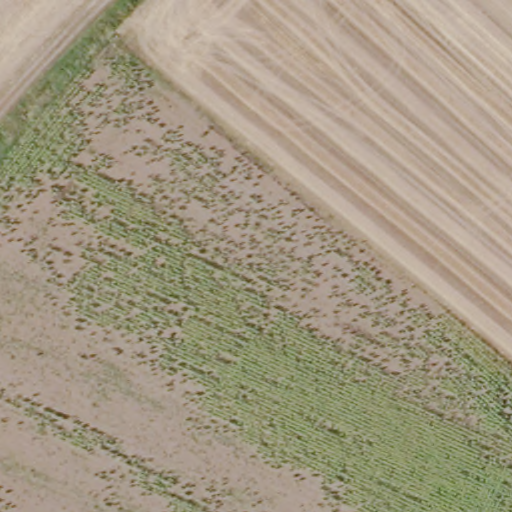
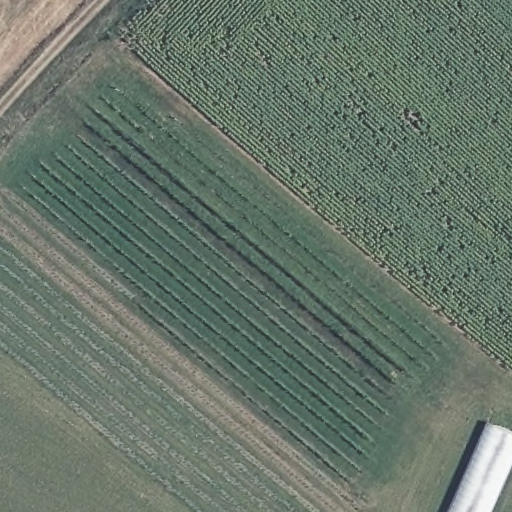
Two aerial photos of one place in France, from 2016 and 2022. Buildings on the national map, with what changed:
new [(487,420),(512,432),(512,464),(491,512),(447,512),(487,420)]

